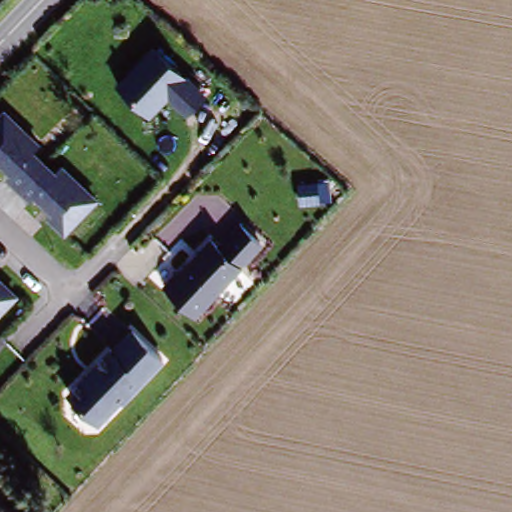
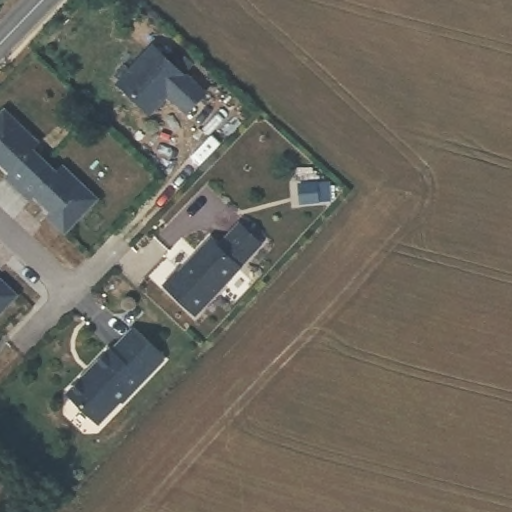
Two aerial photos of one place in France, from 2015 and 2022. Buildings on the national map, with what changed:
unchanged [(193,112),(172,92),(157,108),(149,108),(121,82),(157,45),(209,95),(193,112)]
unchanged [(55,178),(61,171),(95,205),(64,236),(47,220),(52,215),(35,199),(31,203),(7,180),(12,175),(0,163),(0,121),(5,116),(38,149),(32,156),(55,178)]
unchanged [(178,276),(180,277),(214,243),(243,273),(197,319),(166,289),(178,276)]
unchanged [(0,314),(0,282),(3,280),(18,295),(0,314)]
unchanged [(70,394),(70,390),(82,378),(88,377),(96,368),(92,364),(109,347),(113,348),(132,328),(164,360),(125,400),(121,400),(99,422),(70,394)]

